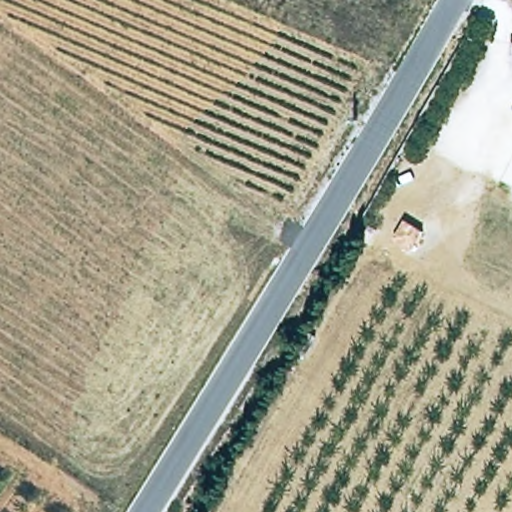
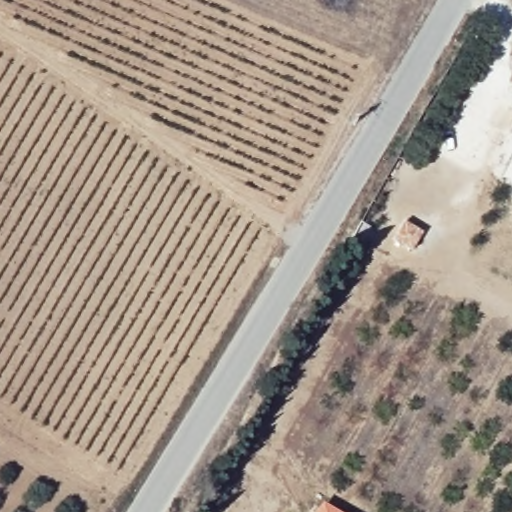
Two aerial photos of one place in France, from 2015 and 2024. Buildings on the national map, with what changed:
unchanged [(422,232),(412,250),(393,239),(404,221),(422,232)]
new [(317,512),(323,502),(341,512),(317,512)]

